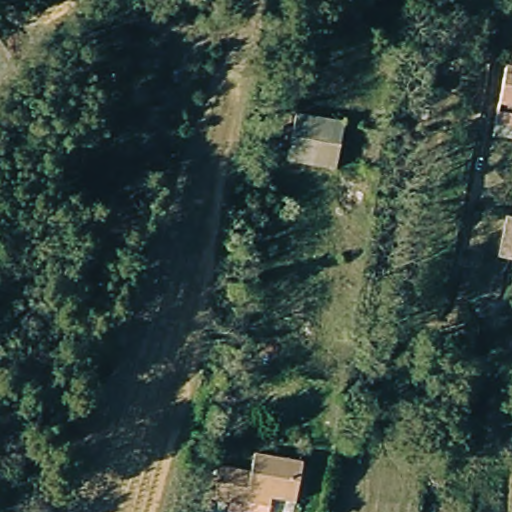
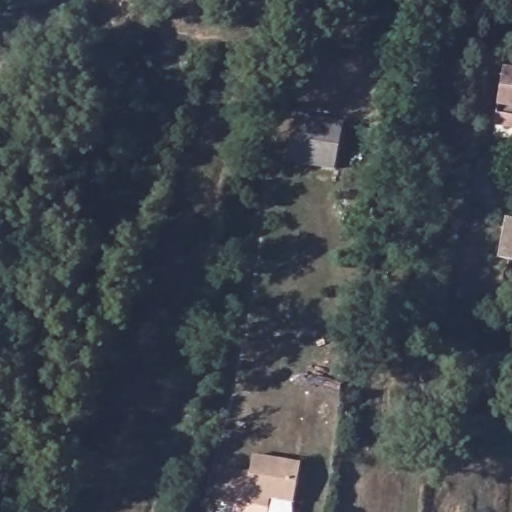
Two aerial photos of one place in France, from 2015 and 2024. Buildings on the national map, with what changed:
unchanged [(496,120),(505,66),(512,67),(512,123),(496,120)]
unchanged [(347,125),(339,171),(292,163),(301,118),(347,125)]
unchanged [(507,263),(512,229),(512,264),(507,263)]
unchanged [(50,372),(33,364),(41,346),(59,354),(50,372)]
unchanged [(250,503),(249,506),(233,503),(217,499),(225,464),(240,467),(255,469),(258,454),(303,463),(295,504),(272,499),(271,508),(250,503)]

